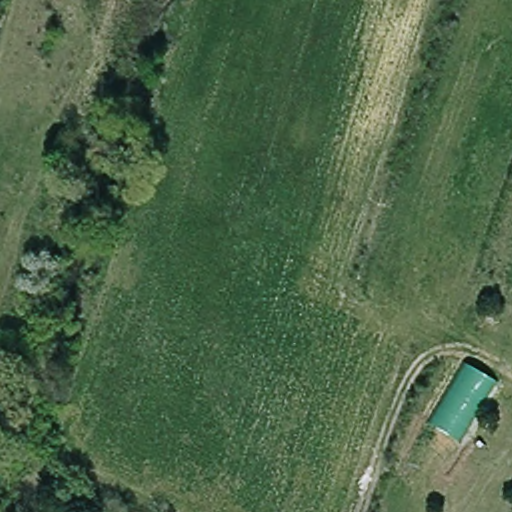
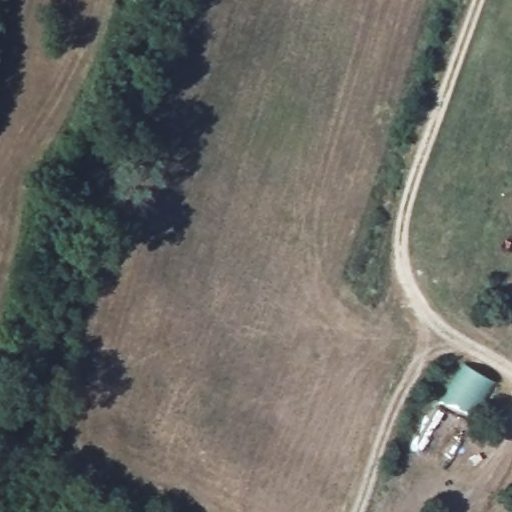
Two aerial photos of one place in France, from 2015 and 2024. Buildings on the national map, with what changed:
unchanged [(490,382),(457,442),(428,424),(462,367),(490,382)]

